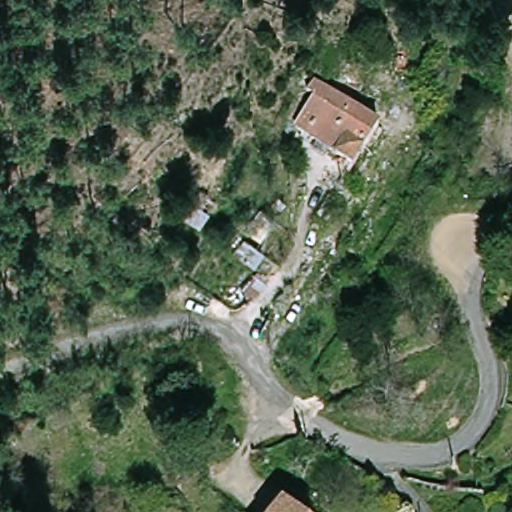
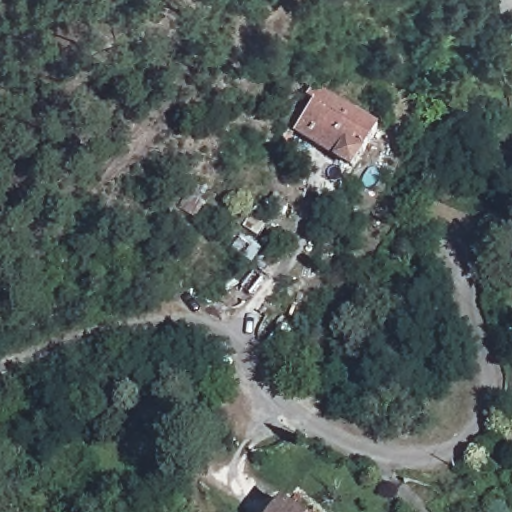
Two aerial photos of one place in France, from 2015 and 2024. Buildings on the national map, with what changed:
unchanged [(358,165),(301,130),(319,102),(312,96),(321,82),(384,125),(358,165)]
unchanged [(270,278),(260,294),(243,281),(253,267),(270,278)]
unchanged [(277,502),(291,512),(272,512),(270,511),(277,502)]
unchanged [(272,512),(270,512),(270,511),(272,512)]

